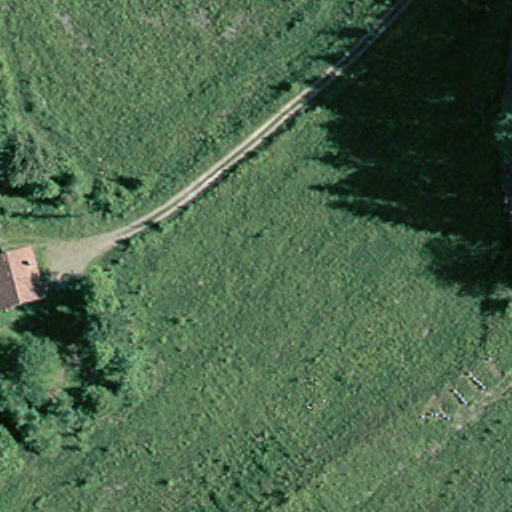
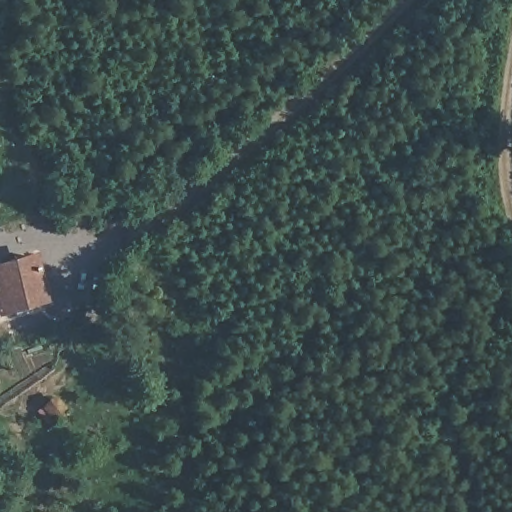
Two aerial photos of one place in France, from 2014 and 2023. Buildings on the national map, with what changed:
unchanged [(0,318),(0,267),(25,258),(34,282),(21,287),(29,307),(0,318)]

